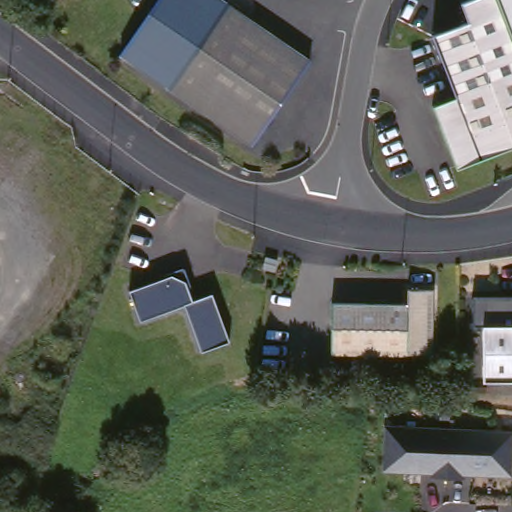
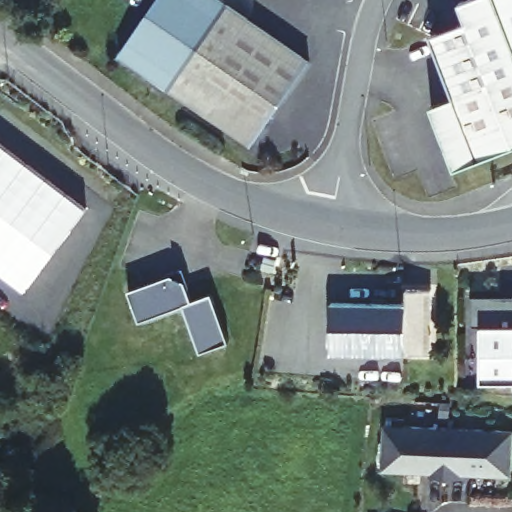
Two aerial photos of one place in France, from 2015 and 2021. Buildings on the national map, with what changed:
unchanged [(119,53),(153,0),(216,0),(231,10),(175,92),(119,53)]
unchanged [(456,169),(432,105),(456,96),(433,35),(469,21),(461,1),(462,0),(512,0),(512,147),(456,169)]
unchanged [(231,10),(317,65),(256,151),(175,92),(231,10)]
new [(25,292),(0,273),(0,145),(86,210),(25,292)]
unchanged [(290,264),(287,278),(275,276),(278,262),(290,264)]
unchanged [(173,278),(187,284),(194,303),(214,296),(231,345),(204,355),(186,308),(142,324),(130,293),(173,278)]
unchanged [(332,307),(401,307),(409,307),(408,291),(421,291),(434,304),(435,358),(408,359),(332,358),(332,307)]
unchanged [(485,328),(470,328),(470,294),(512,295),(512,326),(485,328)]
unchanged [(490,384),(485,328),(512,326),(512,382),(490,384)]
unchanged [(457,483),(440,482),(440,478),(393,475),(396,430),(460,434),(457,483)]
unchanged [(512,437),(512,482),(473,480),(472,484),(457,483),(460,434),(512,437)]

